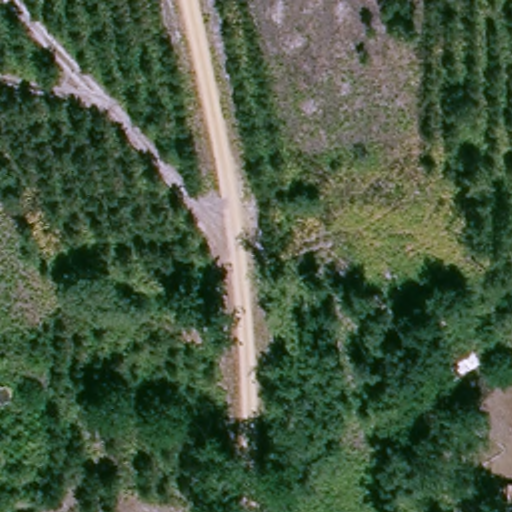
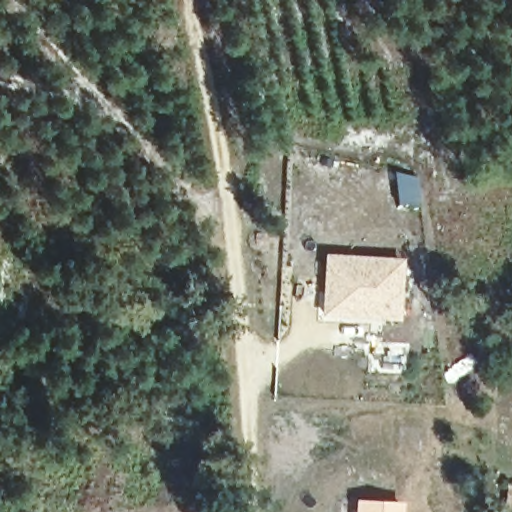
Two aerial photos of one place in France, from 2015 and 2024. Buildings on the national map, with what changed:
new [(326,256),(403,262),(400,322),(322,317),(326,256)]
unchanged [(512,495),(512,506),(503,504),(505,493),(512,495)]
new [(354,498),(404,501),(403,512),(353,512),(354,498)]

